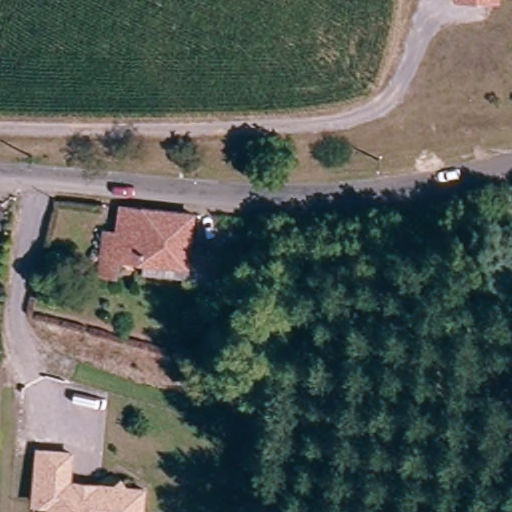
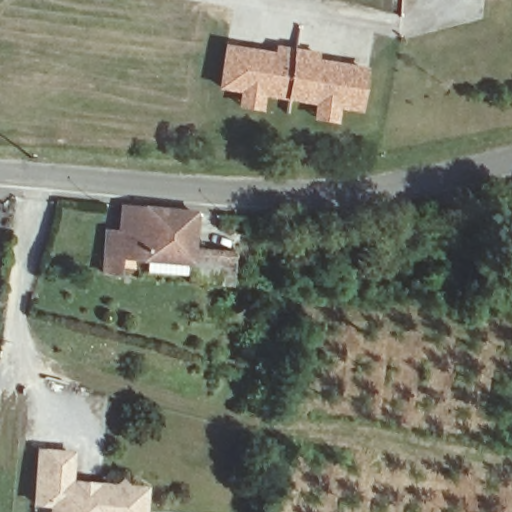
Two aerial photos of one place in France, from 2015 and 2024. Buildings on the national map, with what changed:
new [(238,94),(217,91),(225,46),(275,54),(276,46),(295,49),(320,53),(319,60),(368,68),(362,115),(340,112),(337,126),(312,121),(313,108),(287,103),(271,98),(265,100),(262,114),(236,110),(238,94)]
unchanged [(188,274),(190,268),(122,259),(102,260),(107,232),(128,236),(129,209),(197,216),(194,251),(225,256),(222,272),(222,279),(188,274)]
unchanged [(33,506),(34,454),(67,456),(67,484),(111,485),(117,479),(122,483),(123,486),(141,486),(140,512),(49,512),(49,507),(33,506)]

